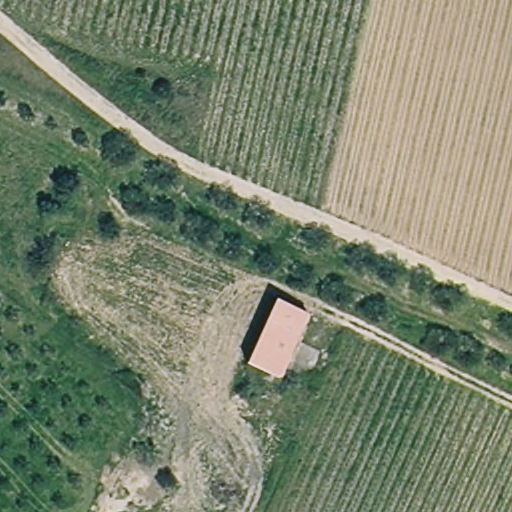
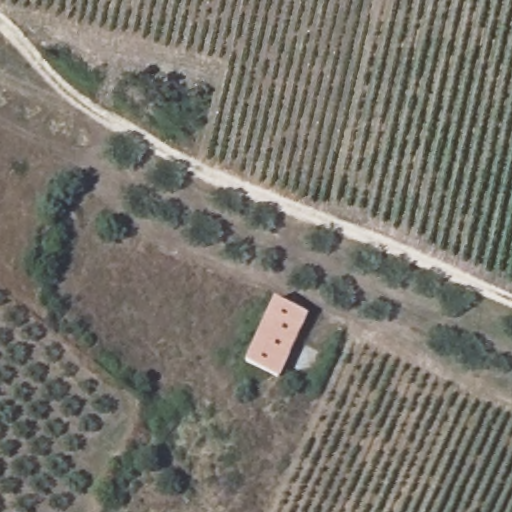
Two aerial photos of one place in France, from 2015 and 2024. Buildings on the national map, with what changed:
unchanged [(277,381),(248,367),(277,305),(306,318),(277,381)]

